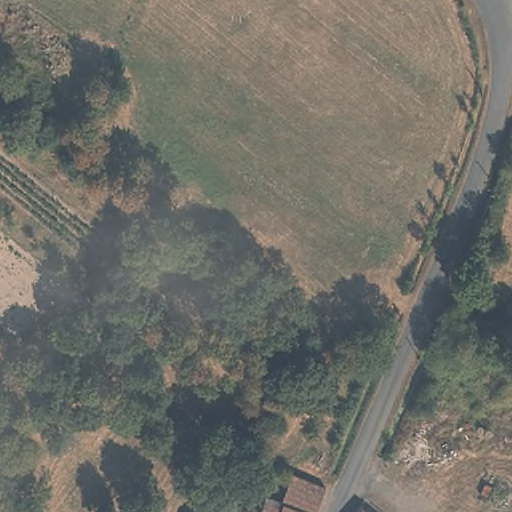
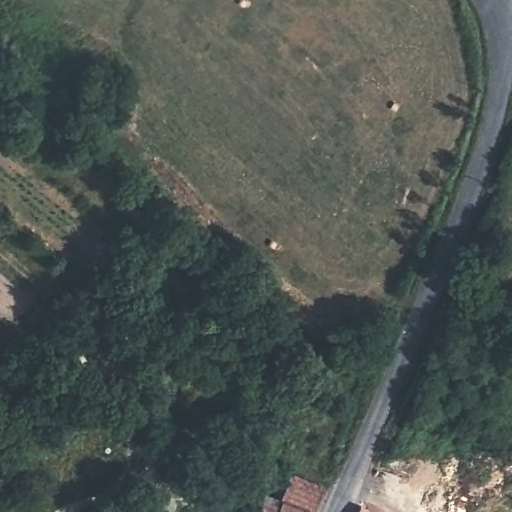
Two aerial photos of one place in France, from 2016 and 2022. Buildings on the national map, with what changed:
unchanged [(448,2),(448,0),(454,0),(454,2),(448,2)]
unchanged [(290,474),(324,487),(314,511),(314,512),(257,512),(263,492),(279,497),(290,474)]

